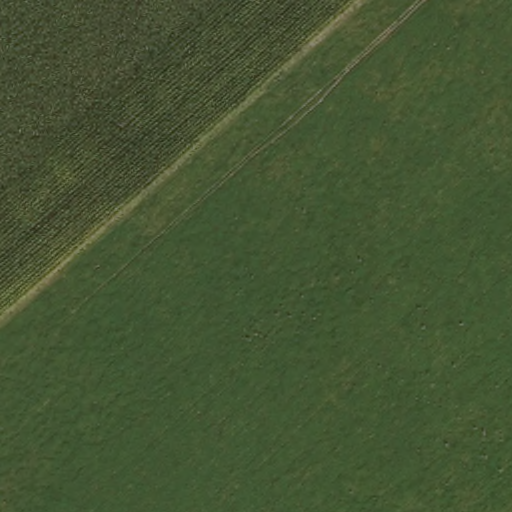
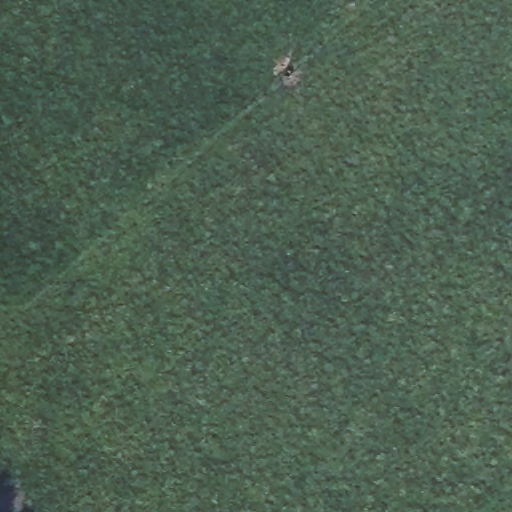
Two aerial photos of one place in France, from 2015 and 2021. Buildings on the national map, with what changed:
[]

